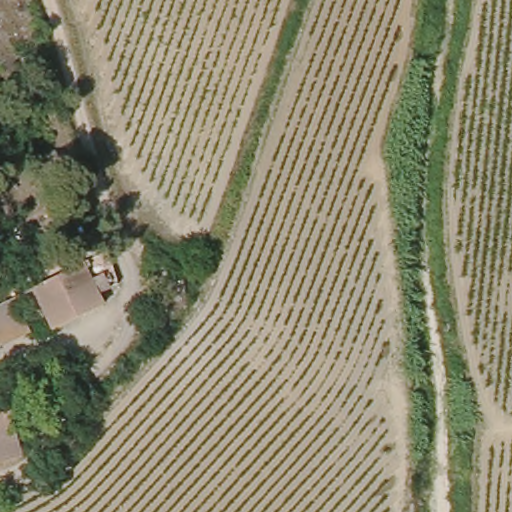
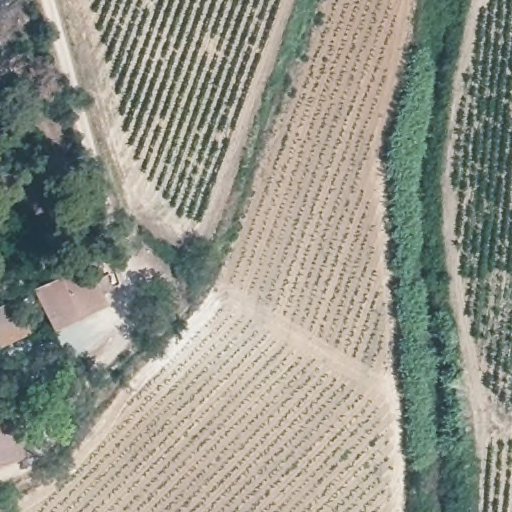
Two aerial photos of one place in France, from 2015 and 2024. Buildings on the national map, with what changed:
unchanged [(54,326),(41,299),(34,302),(18,309),(12,300),(110,252),(122,282),(101,293),(106,305),(56,331),(54,326)]
unchanged [(12,300),(18,309),(29,333),(3,345),(0,341),(0,306),(12,300)]
unchanged [(10,392),(30,457),(0,466),(0,395),(10,392)]

